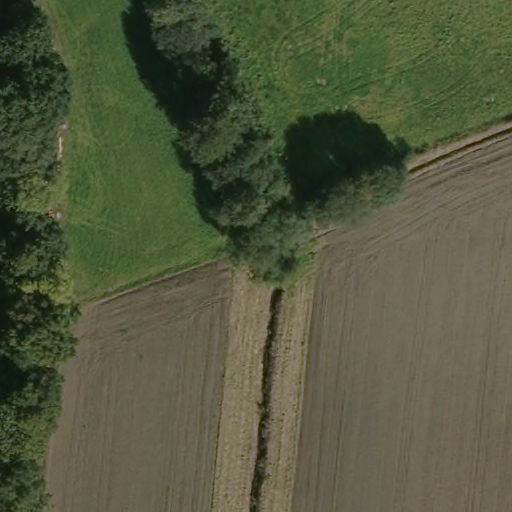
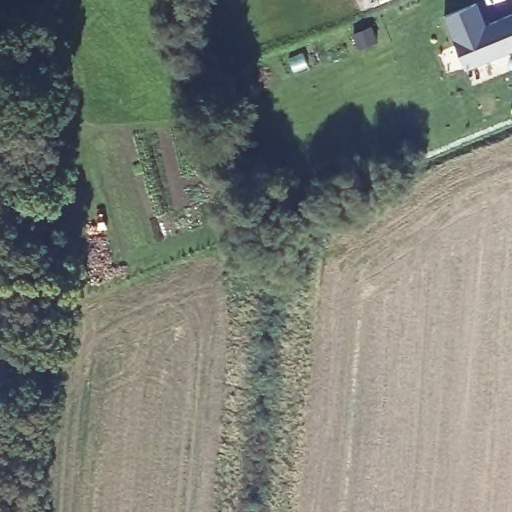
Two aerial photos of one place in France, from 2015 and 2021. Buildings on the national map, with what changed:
new [(444,16),(478,3),(486,26),(512,16),(512,49),(465,68),(444,16)]

